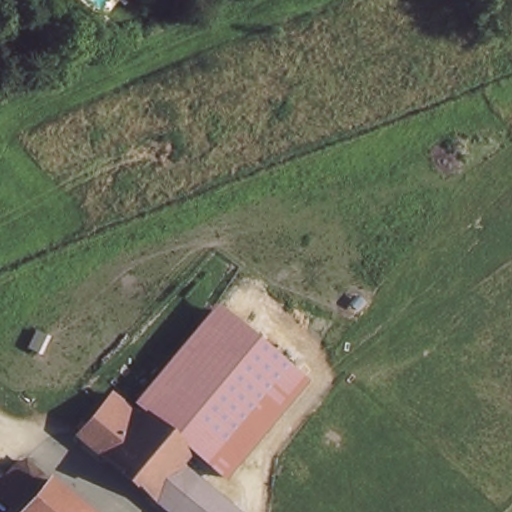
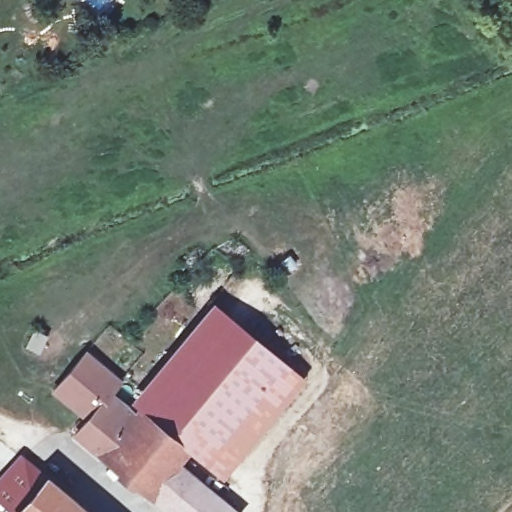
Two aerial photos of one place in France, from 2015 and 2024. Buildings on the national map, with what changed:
unchanged [(137,405),(131,400),(212,300),(307,379),(224,479),(185,446),(137,405)]
new [(108,389),(82,421),(48,394),(85,350),(122,382),(113,393),(108,389)]
unchanged [(105,449),(102,454),(74,430),(108,389),(132,409),(137,405),(185,446),(173,461),(150,488),(105,449)]
unchanged [(0,502),(0,488),(23,460),(44,477),(16,512),(12,512),(0,502)]
unchanged [(231,512),(169,512),(147,492),(150,488),(173,461),(231,512)]
unchanged [(44,477),(87,512),(16,512),(44,477)]

